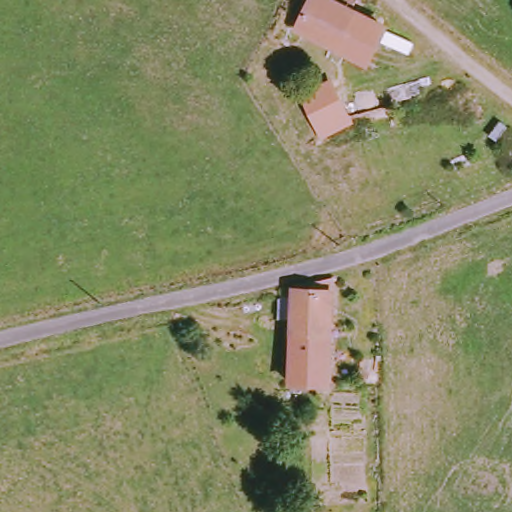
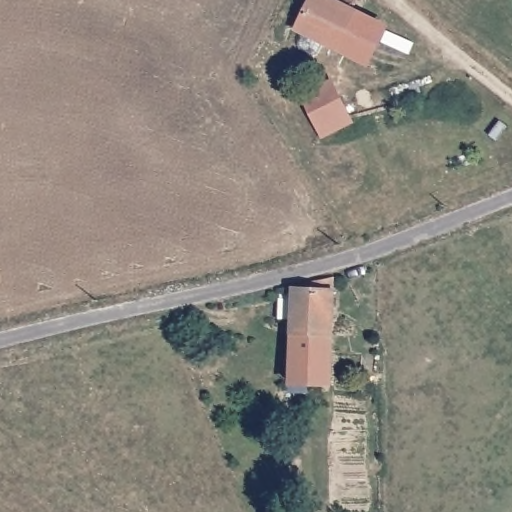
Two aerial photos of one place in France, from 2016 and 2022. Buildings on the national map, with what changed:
unchanged [(348,58),(303,43),(299,41),(313,0),(344,0),(364,9),(348,58)]
unchanged [(348,58),(362,14),(389,26),(369,69),(348,58)]
unchanged [(336,102),(344,120),(347,127),(314,141),(304,115),(316,110),(336,102)]
unchanged [(337,293),(335,389),(293,388),(295,294),(337,293)]

